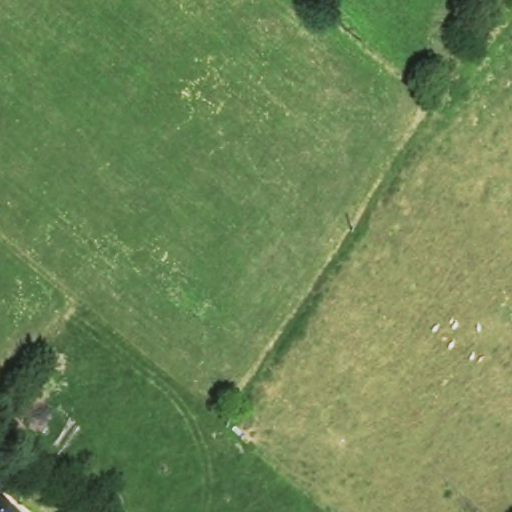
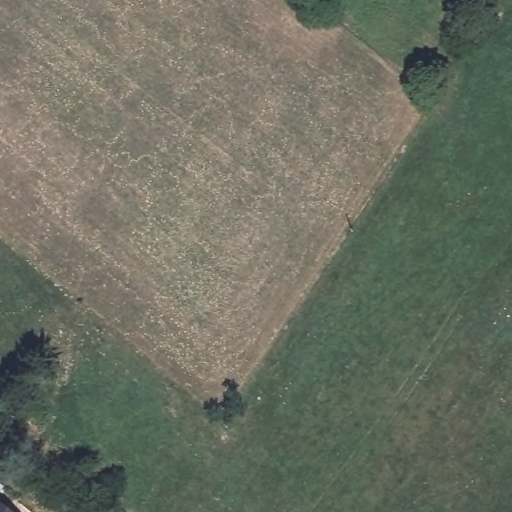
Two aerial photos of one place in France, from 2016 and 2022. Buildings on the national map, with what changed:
unchanged [(0,492),(0,480),(5,484),(0,492)]
unchanged [(0,512),(0,495),(19,512),(0,512)]

